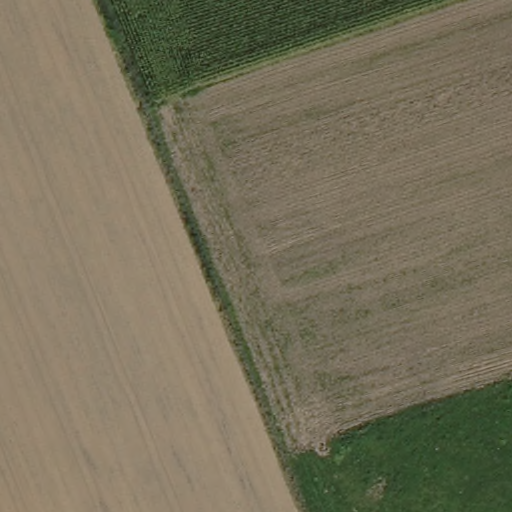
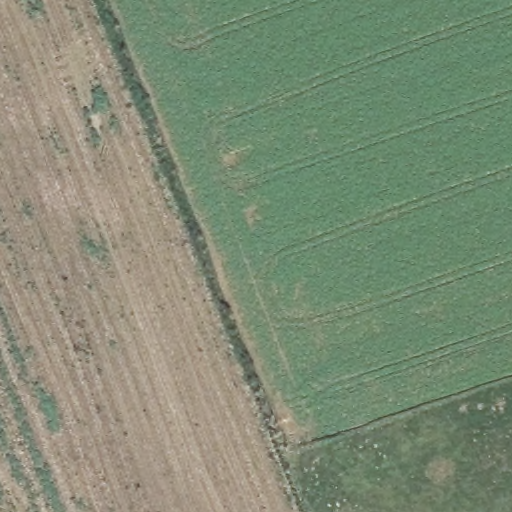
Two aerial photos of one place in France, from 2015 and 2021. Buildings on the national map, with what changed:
[]

